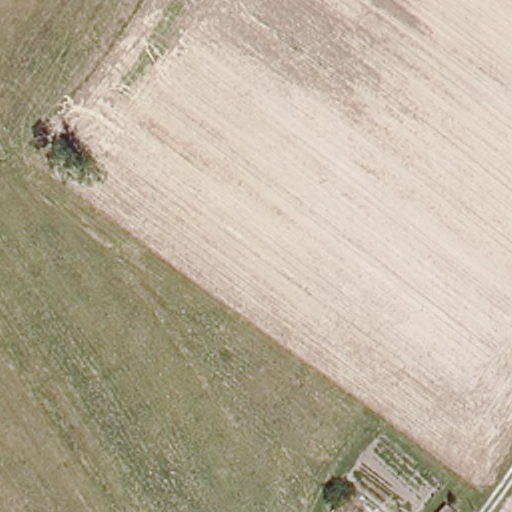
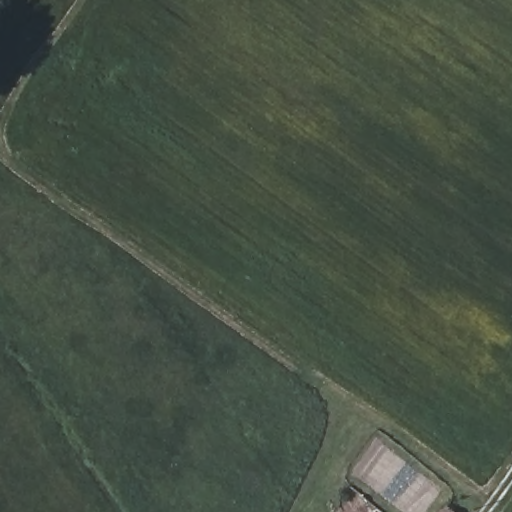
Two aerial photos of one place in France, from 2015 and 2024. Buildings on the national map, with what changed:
unchanged [(446,502),(458,512),(437,512),(446,502)]

